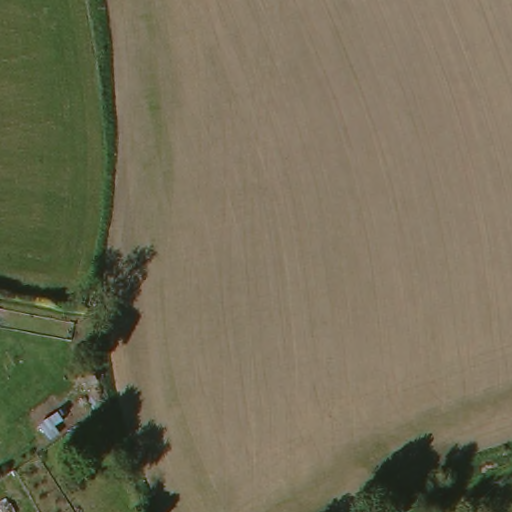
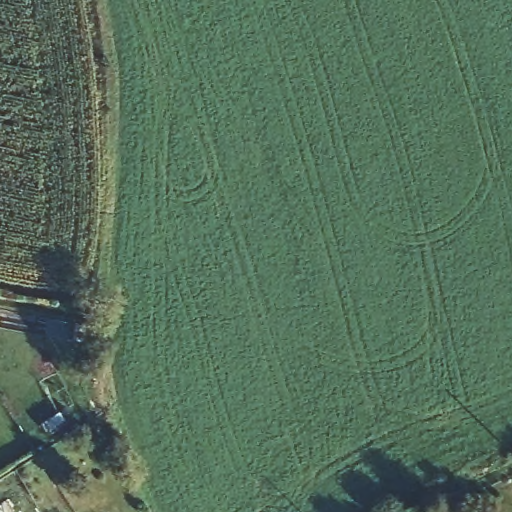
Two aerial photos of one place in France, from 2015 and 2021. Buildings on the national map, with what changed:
[]

